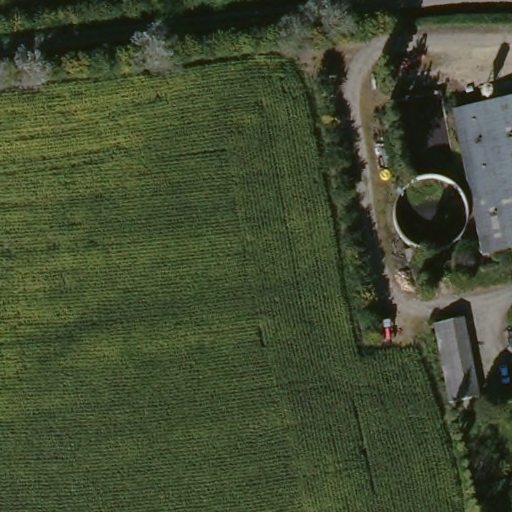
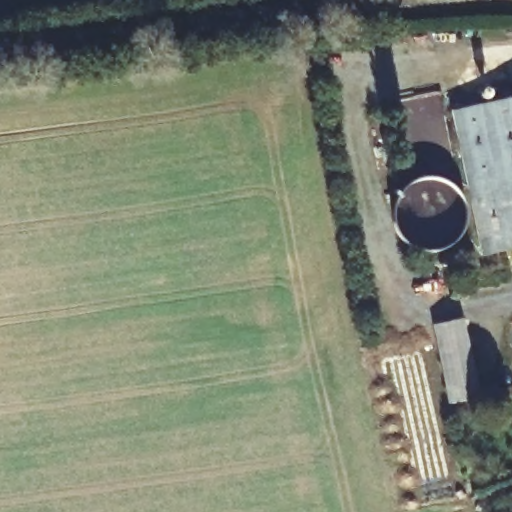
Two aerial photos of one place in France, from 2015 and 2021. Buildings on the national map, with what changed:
unchanged [(512,222),(487,101),(512,96),(512,222)]
unchanged [(512,245),(488,250),(460,107),(487,101),(512,222),(512,245)]
unchanged [(454,407),(437,327),(467,321),(485,401),(454,407)]

